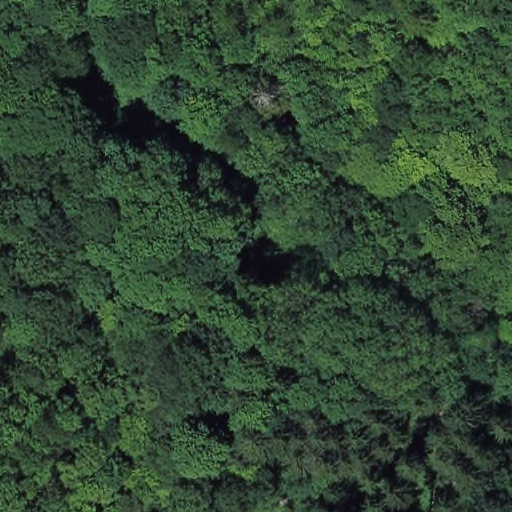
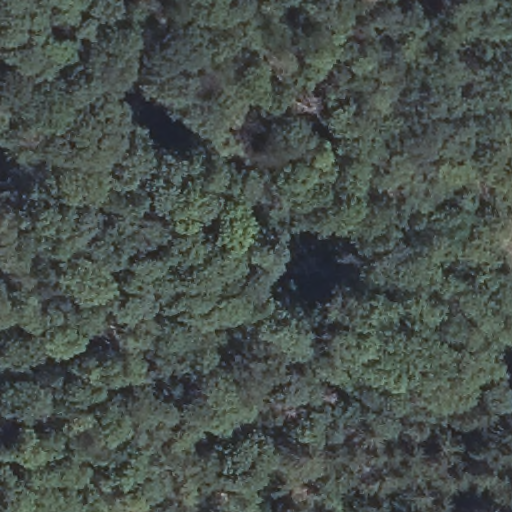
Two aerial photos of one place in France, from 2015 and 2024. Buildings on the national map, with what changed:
[]

